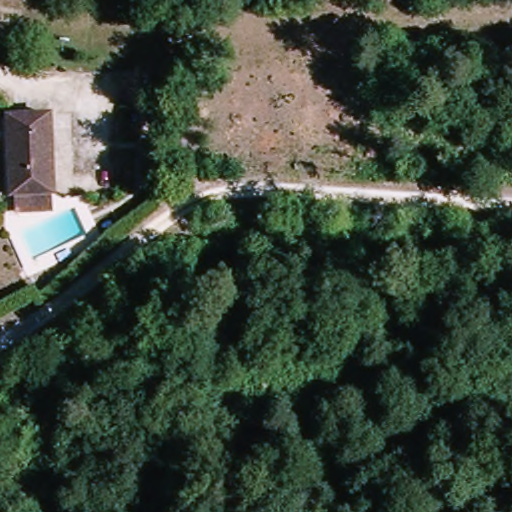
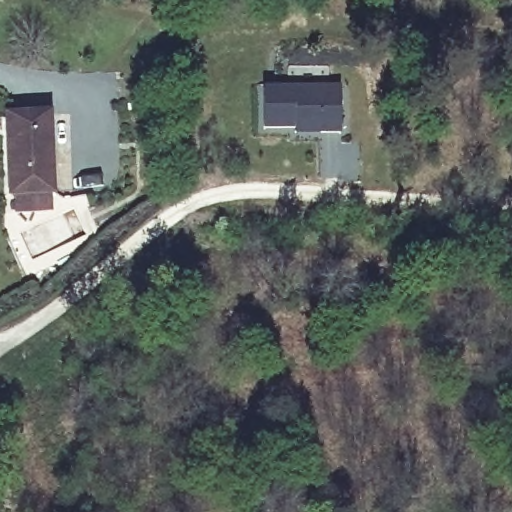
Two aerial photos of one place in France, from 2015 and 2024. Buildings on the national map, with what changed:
new [(297,128),(266,129),(264,88),(340,87),(341,134),(297,135),(297,128)]
unchanged [(9,192),(4,116),(47,115),(51,190),(52,208),(15,210),(15,192),(9,192)]

